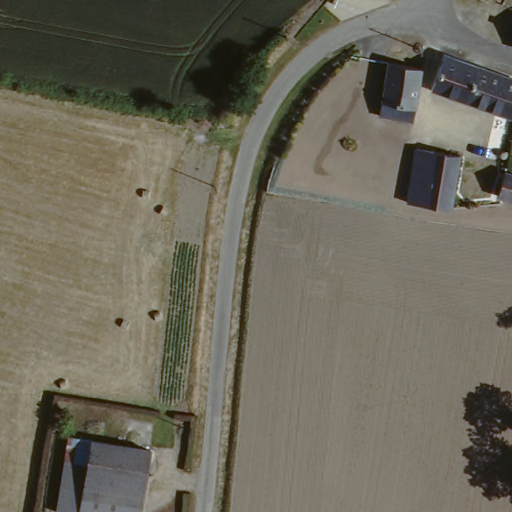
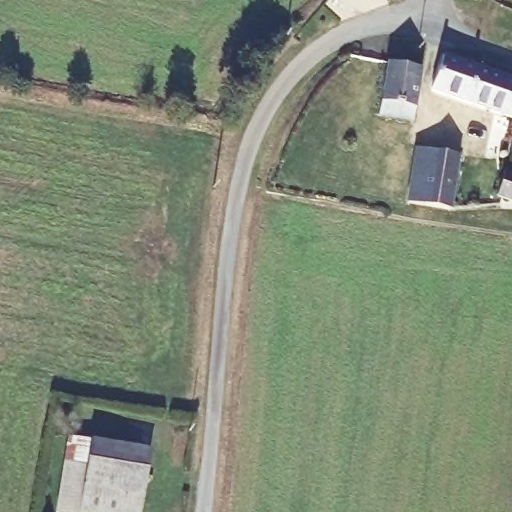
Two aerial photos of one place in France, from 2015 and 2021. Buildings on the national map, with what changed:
unchanged [(451,53),(478,60),(467,102),(439,94),(451,53)]
unchanged [(383,60),(418,62),(415,116),(381,114),(383,60)]
unchanged [(512,70),(512,114),(467,102),(478,60),(512,70)]
unchanged [(421,148),(450,150),(467,151),(463,187),(453,202),(433,203),(417,202),(421,150),(421,148)]
unchanged [(512,169),(512,198),(501,194),(508,168),(512,169)]
unchanged [(72,434),(125,441),(121,465),(69,457),(72,434)]
unchanged [(155,445),(144,512),(87,512),(62,508),(69,457),(121,465),(125,441),(155,445)]

